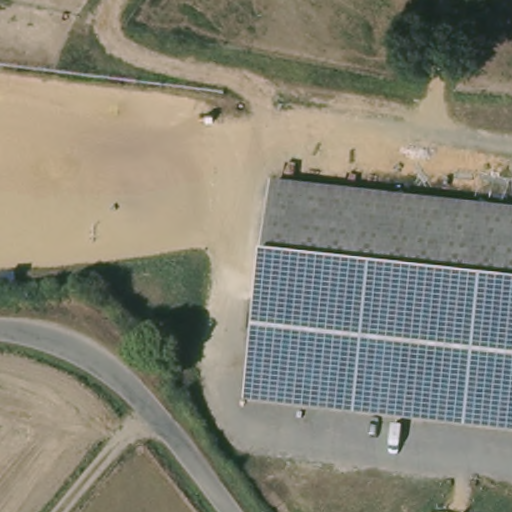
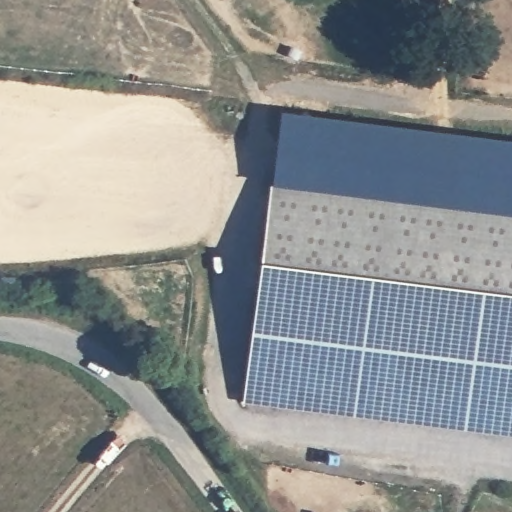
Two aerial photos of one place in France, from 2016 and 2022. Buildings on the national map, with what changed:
new [(270,185),(281,109),(512,138),(512,215),(270,185)]
unchanged [(242,403),(270,185),(512,215),(512,437),(242,403)]

